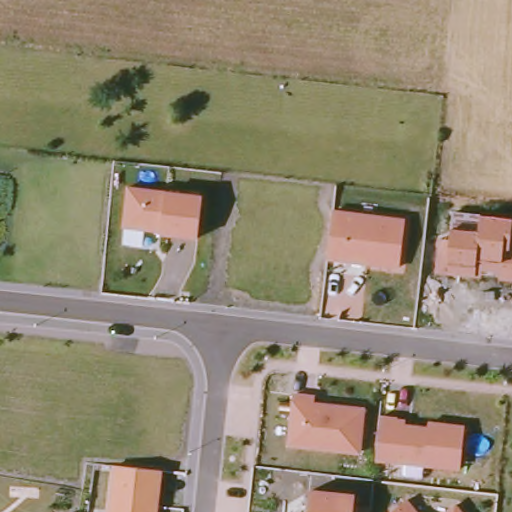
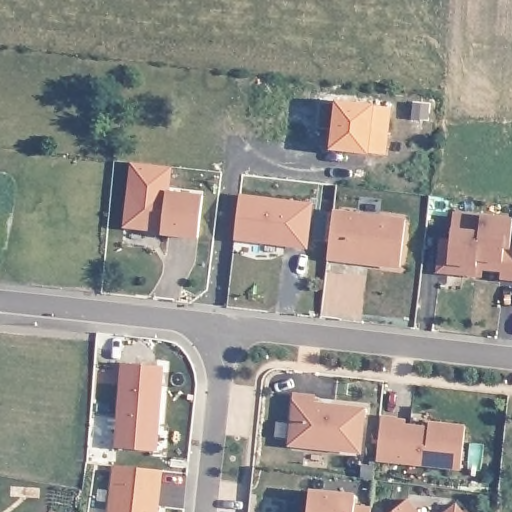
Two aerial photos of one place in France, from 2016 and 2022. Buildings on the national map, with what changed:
unchanged [(200,239),(162,234),(125,230),(130,187),(170,192),(203,196),(200,239)]
new [(309,248),(235,239),(239,193),(313,202),(309,248)]
unchanged [(400,271),(329,262),(335,212),(408,221),(400,271)]
unchanged [(455,212),(512,219),(512,280),(498,278),(498,272),(481,270),(481,277),(435,273),(438,237),(452,239),(455,212)]
new [(113,446),(120,362),(162,366),(157,449),(113,446)]
unchanged [(290,447),(295,396),(317,397),(316,404),(366,410),(361,454),(290,447)]
unchanged [(460,470),(377,462),(383,417),(409,421),(408,425),(431,427),(431,422),(465,426),(460,470)]
unchanged [(154,512),(109,512),(113,467),(158,472),(154,512)]
unchanged [(355,496),(355,507),(371,509),(371,512),(309,512),(311,491),(355,496)]
unchanged [(418,512),(394,512),(409,501),(418,512)]
unchanged [(464,512),(450,512),(458,506),(464,512)]

